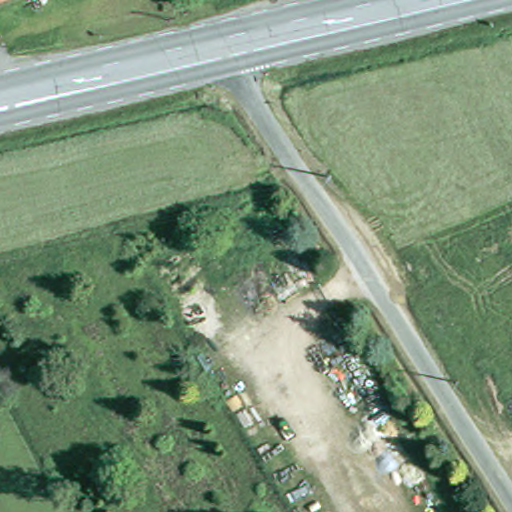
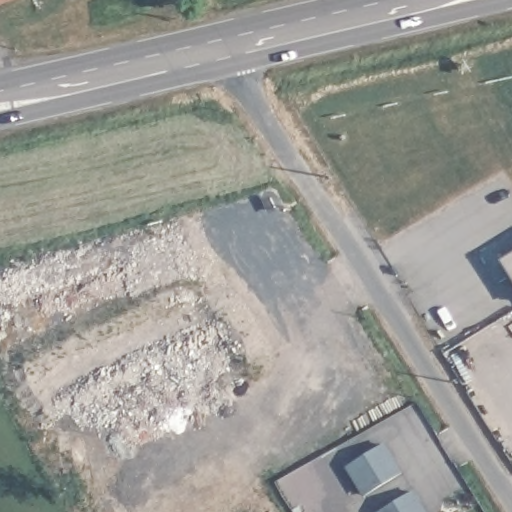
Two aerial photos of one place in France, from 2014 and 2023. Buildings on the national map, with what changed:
new [(501,260),(512,253),(512,277),(501,260)]
new [(364,497),(346,466),(385,442),(404,471),(364,497)]
new [(428,512),(378,512),(415,490),(428,512)]

